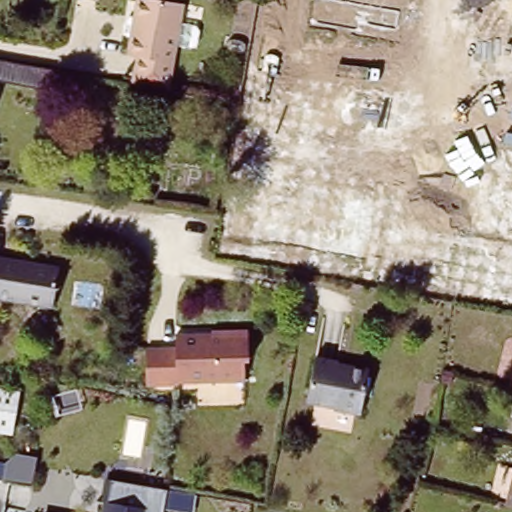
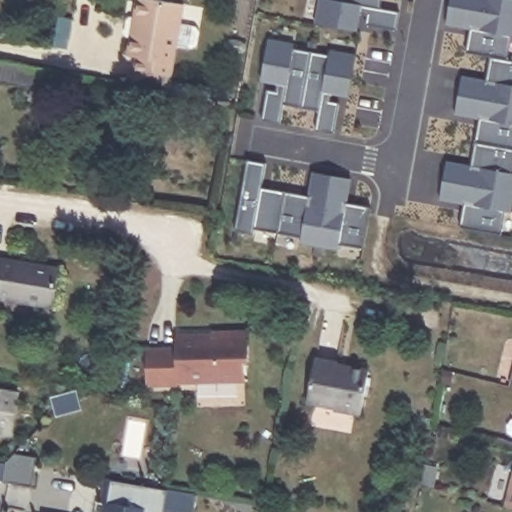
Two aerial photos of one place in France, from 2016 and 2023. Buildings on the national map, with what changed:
unchanged [(125,60),(136,0),(137,0),(182,8),(167,95),(132,89),(131,89),(136,62),(125,60)]
new [(318,22),(322,0),(385,0),(383,7),(403,10),(400,29),(368,23),(370,14),(363,13),(360,30),(318,22)]
new [(510,59),(512,59),(512,211),(507,210),(503,233),(462,226),(465,209),(472,210),(473,204),(444,198),(451,160),(480,166),(482,159),(474,158),(480,124),(488,125),(489,118),(460,113),(467,75),(496,80),(497,74),(490,72),(493,56),(468,51),(472,35),(482,37),(484,30),(450,24),(455,0),(512,0),(512,47),(510,59)]
new [(271,37),(298,42),(297,46),(332,52),(332,48),(359,53),(352,95),(335,92),(333,99),(342,101),(337,132),(318,129),(322,109),(304,106),(286,103),(283,122),(265,119),(270,88),(279,89),(280,82),(263,79),(271,37)]
unchanged [(0,63),(46,71),(43,90),(0,82),(0,63)]
new [(250,158),(269,161),(263,192),(270,194),(272,186),(305,193),(303,200),(310,201),(315,172),(353,179),(347,208),(355,209),(355,202),(373,205),(365,247),(342,242),(340,248),(303,241),(303,236),(257,227),(256,232),(237,228),(250,158)]
unchanged [(0,259),(62,269),(56,308),(0,299),(0,259)]
unchanged [(182,387),(182,390),(152,392),(148,355),(177,352),(175,341),(202,339),(203,347),(215,346),(213,336),(247,333),(250,363),(242,364),(245,382),(182,387)]
unchanged [(331,389),(328,407),(305,403),(312,359),(335,363),(335,366),(365,371),(357,415),(337,412),(340,390),(331,389)]
unchanged [(508,389),(512,374),(512,390),(508,389)]
unchanged [(0,461),(8,461),(9,451),(40,457),(33,484),(0,479),(0,461)]
unchanged [(502,504),(512,466),(512,467),(512,507),(502,504)]
unchanged [(100,500),(104,477),(166,488),(162,512),(101,512),(102,501),(100,500)]
unchanged [(41,512),(42,510),(50,512),(41,512)]

